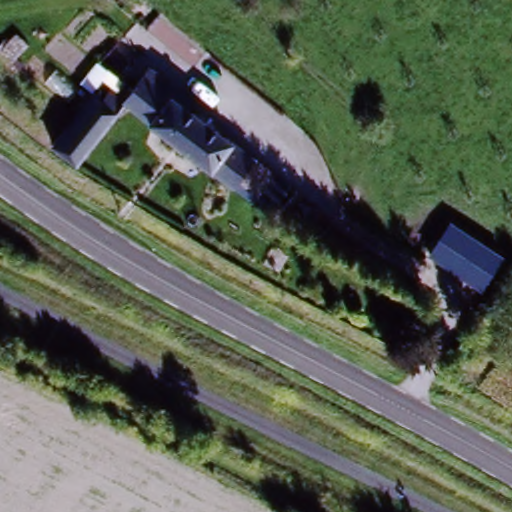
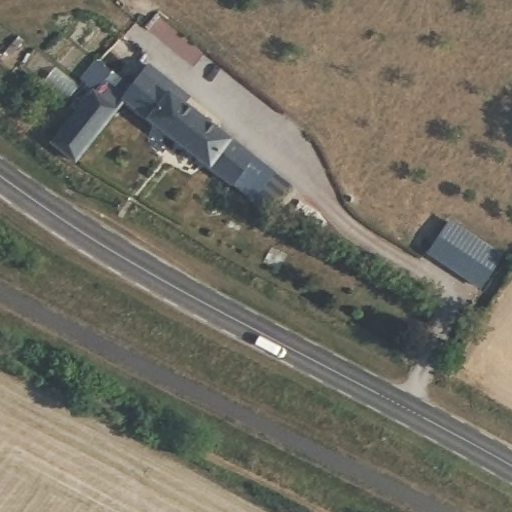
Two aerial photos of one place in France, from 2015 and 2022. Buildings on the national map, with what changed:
unchanged [(137,96),(144,87),(135,81),(143,71),(169,90),(166,95),(143,122),(120,106),(68,165),(46,146),(89,95),(99,102),(106,92),(117,100),(128,88),(137,96)]
unchanged [(250,197),(230,180),(225,187),(220,184),(143,122),(166,95),(246,162),(265,178),(250,197)]
unchanged [(505,256),(485,290),(428,254),(451,222),(505,256)]

